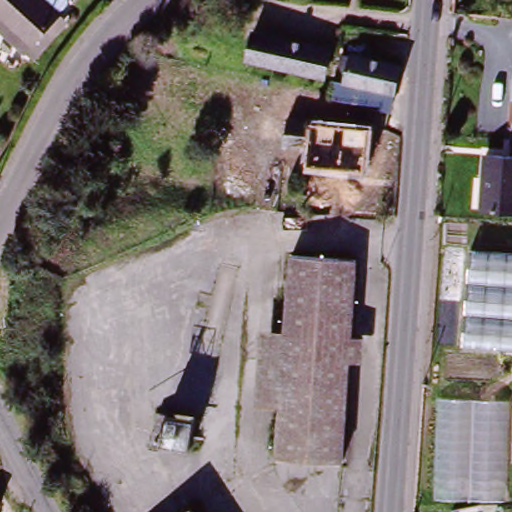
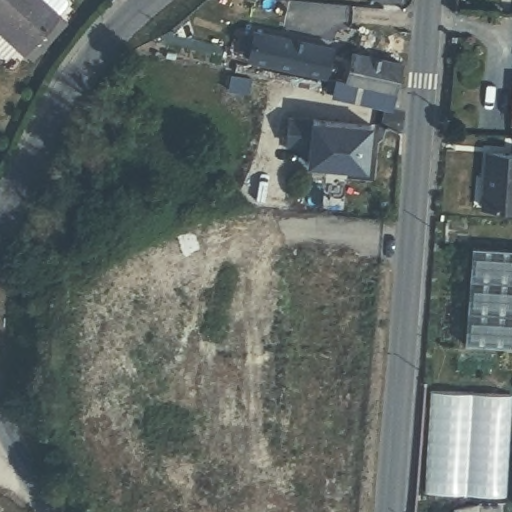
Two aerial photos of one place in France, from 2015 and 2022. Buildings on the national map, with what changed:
unchanged [(34,58),(27,53),(17,44),(19,42),(0,25),(0,24),(4,21),(0,17),(0,0),(47,0),(63,15),(69,20),(34,58)]
unchanged [(260,31),(335,48),(329,76),(253,59),(260,31)]
unchanged [(335,96),(337,92),(340,78),(345,54),(357,56),(357,53),(406,65),(399,93),(397,104),(395,109),(363,102),(359,119),(332,113),(335,96)]
unchanged [(282,94),(299,96),(299,104),(282,103),(282,94)]
unchanged [(512,103),(512,120),(510,120),(512,103)]
unchanged [(372,171),(312,164),(315,146),(290,144),(290,141),(266,139),(269,116),(292,119),(293,117),(317,120),(377,126),(372,171)]
unchanged [(512,129),(512,143),(510,143),(512,129)]
unchanged [(512,212),(480,209),(484,152),(512,153),(512,212)]
unchanged [(472,247),(512,251),(512,354),(464,352),(472,247)]
demolished [(343,461),(279,457),(282,407),(287,331),(292,256),(357,260),(352,335),(350,361),(343,461)]
unchanged [(444,398),(508,401),(504,501),(442,496),(444,398)]
unchanged [(2,509),(0,512),(0,508),(2,509)]
demolished [(195,512),(185,512),(192,508),(195,512)]

